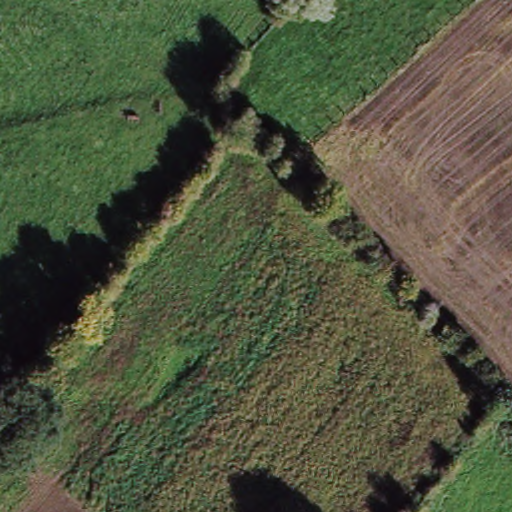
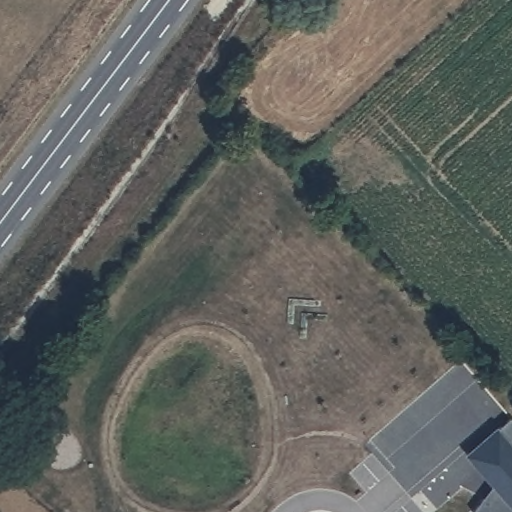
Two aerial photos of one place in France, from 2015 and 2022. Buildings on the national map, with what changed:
new [(472,511),(495,482),(469,453),(512,416),(512,512),(474,512),(472,511)]

